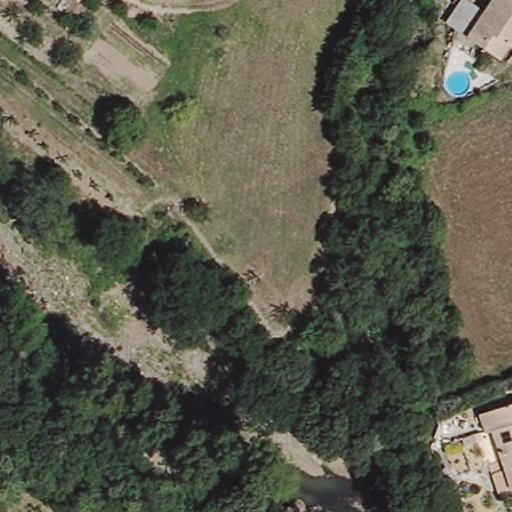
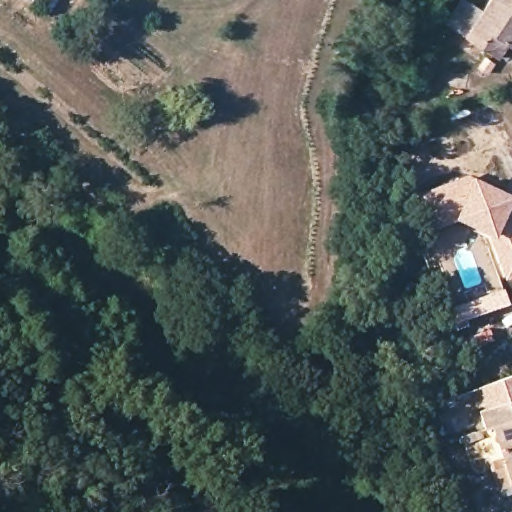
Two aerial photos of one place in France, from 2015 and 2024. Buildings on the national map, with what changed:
unchanged [(512,46),(510,45),(507,49),(501,45),(494,55),(461,33),(482,0),(508,0),(512,0),(512,46)]
new [(451,220),(429,230),(417,193),(467,174),(471,177),(512,197),(512,200),(509,205),(512,211),(512,277),(504,280),(483,234),(451,220)]
new [(481,388),(512,376),(512,400),(484,410),(481,388)]
unchanged [(483,466),(496,461),(484,433),(477,436),(469,415),(512,400),(512,489),(494,496),(483,466)]
unchanged [(429,477),(438,475),(446,495),(437,499),(429,477)]

